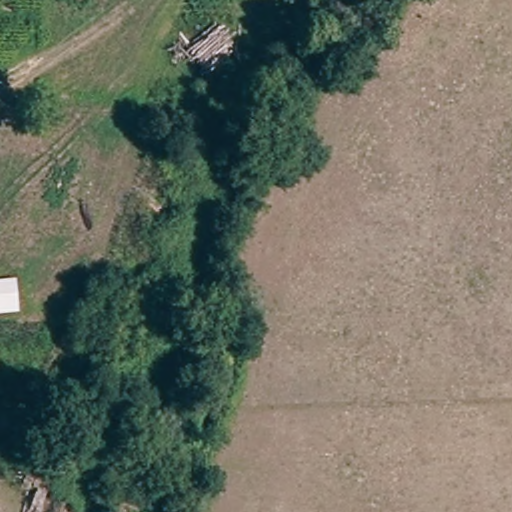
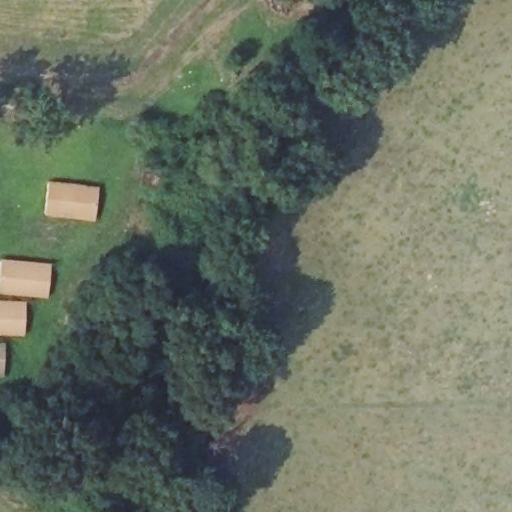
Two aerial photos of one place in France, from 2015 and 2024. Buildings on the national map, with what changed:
new [(48,180),(99,186),(95,221),(44,215),(48,180)]
new [(51,262),(48,297),(0,292),(0,257),(51,262)]
new [(25,301),(25,335),(0,333),(0,299),(25,301)]
new [(6,343),(4,376),(0,376),(0,343),(6,343)]

